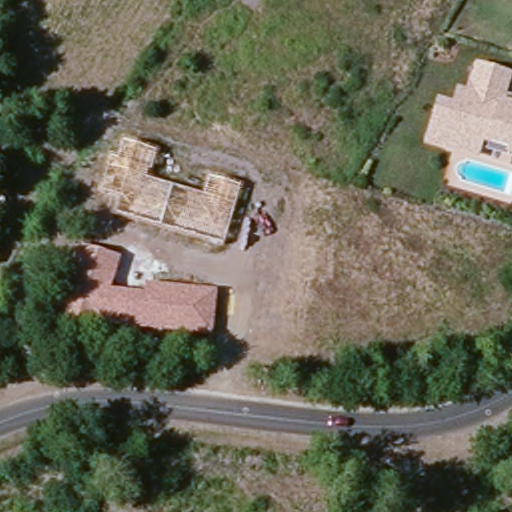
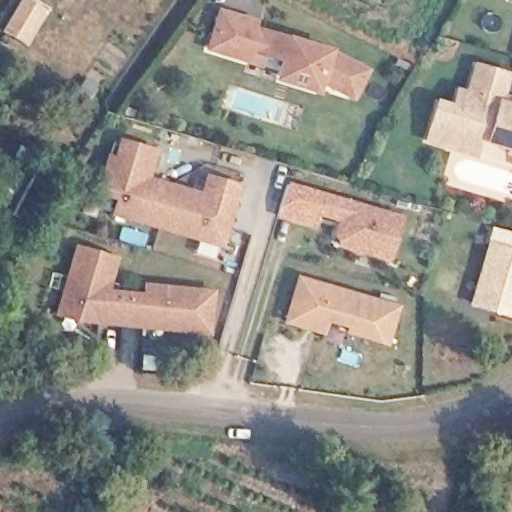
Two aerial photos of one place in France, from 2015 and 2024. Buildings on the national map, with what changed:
new [(277,79),(280,68),(283,60),(263,54),(260,64),(243,59),(209,48),(220,11),(237,16),(251,20),(250,26),(328,51),(366,70),(353,96),(320,80),(317,91),(277,79)]
unchanged [(477,143),(472,159),(450,152),(425,144),(436,106),(452,111),(457,95),(466,98),(475,69),(507,79),(500,101),(512,104),(512,159),(504,156),(505,152),(477,143)]
new [(112,216),(116,200),(96,194),(109,154),(115,156),(120,139),(161,150),(152,177),(202,191),(207,175),(245,186),(225,250),(112,216)]
new [(315,215),(320,216),(315,230),(273,217),(285,183),(321,193),(315,215)]
new [(390,263),(345,249),(335,237),(340,222),(315,215),(321,193),(405,216),(390,263)]
new [(512,319),(470,307),(489,243),(512,249),(512,319)]
unchanged [(213,334),(97,321),(94,329),(60,320),(81,245),(121,255),(112,287),(145,291),(146,282),(216,290),(213,334)]
new [(388,345),(345,332),(347,326),(330,321),(325,334),(285,322),(298,275),(401,305),(388,345)]

